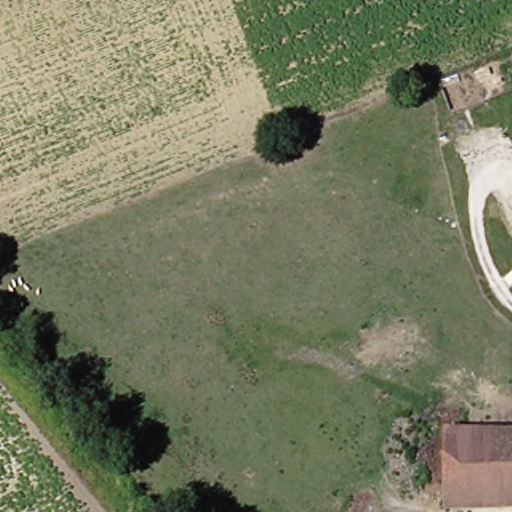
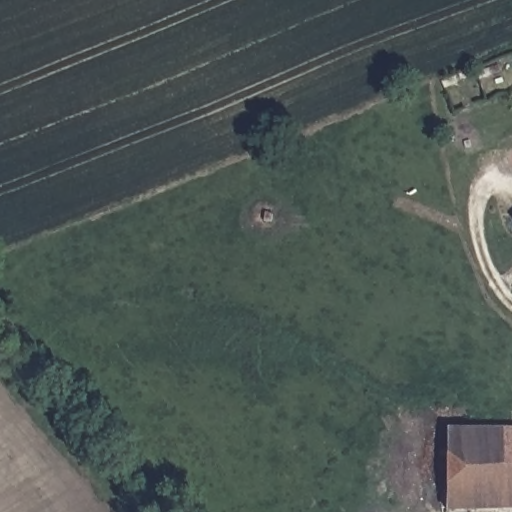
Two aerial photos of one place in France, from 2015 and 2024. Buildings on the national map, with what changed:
unchanged [(469,506),(469,431),(512,431),(512,506),(469,506)]

